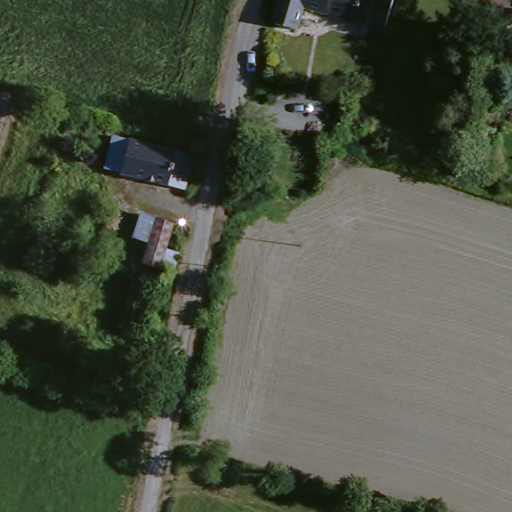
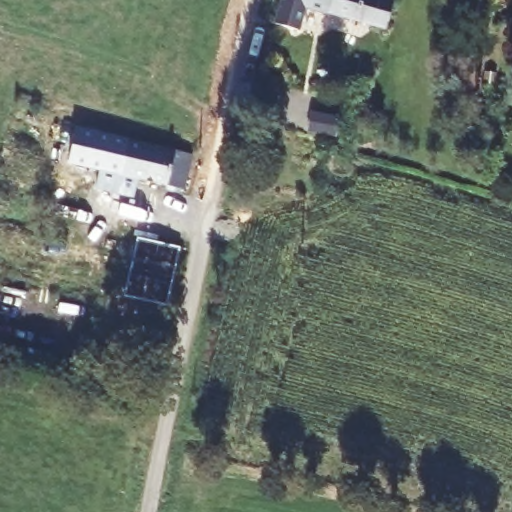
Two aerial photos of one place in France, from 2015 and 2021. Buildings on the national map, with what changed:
unchanged [(303,14),(280,8),(284,0),(307,0),(303,14)]
unchanged [(362,15),(334,6),(314,0),(401,0),(391,24),(362,15)]
unchanged [(129,174),(129,171),(114,169),(111,137),(135,142),(136,143),(200,156),(190,181),(193,189),(129,174)]
unchanged [(169,232),(154,278),(134,272),(148,226),(169,232)]

